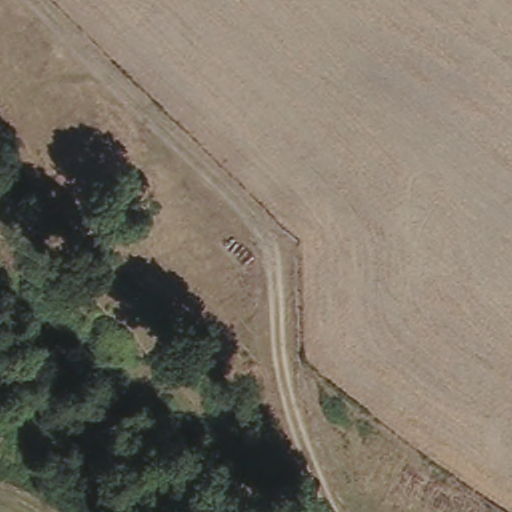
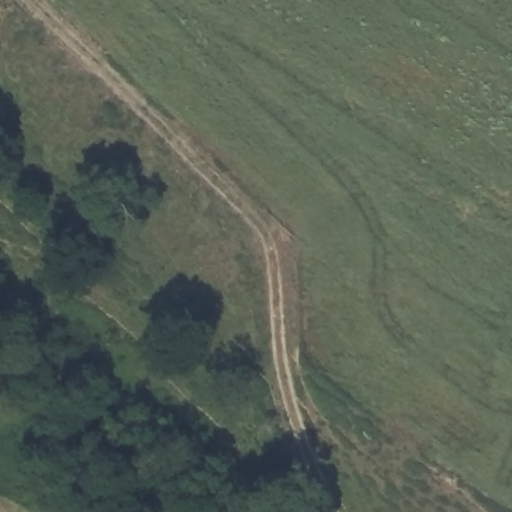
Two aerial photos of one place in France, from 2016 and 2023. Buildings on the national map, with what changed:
[]

